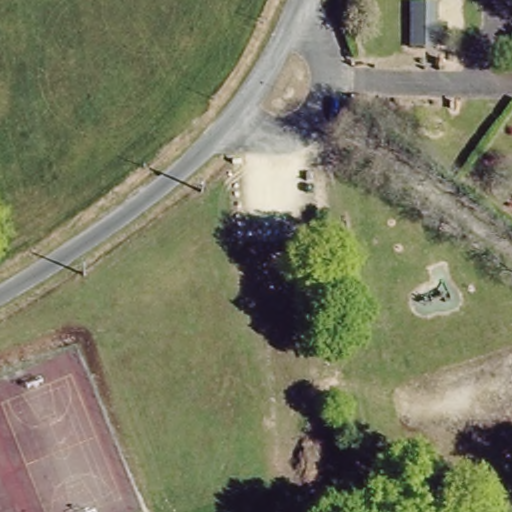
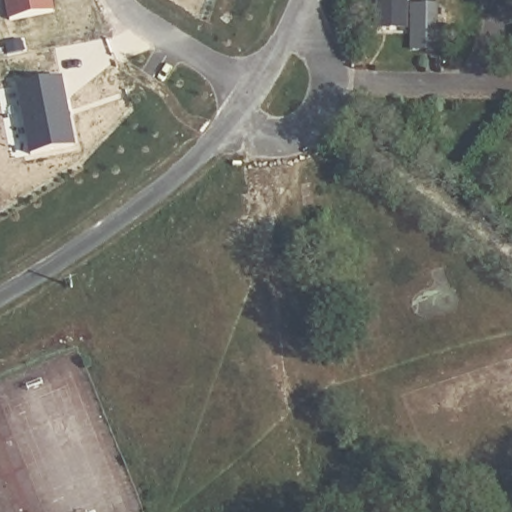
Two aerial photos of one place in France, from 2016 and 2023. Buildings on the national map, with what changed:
new [(53,12),(10,20),(6,0),(51,0),(53,12)]
unchanged [(436,2),(435,48),(407,49),(408,2),(436,2)]
new [(60,77),(74,146),(31,154),(18,85),(60,77)]

